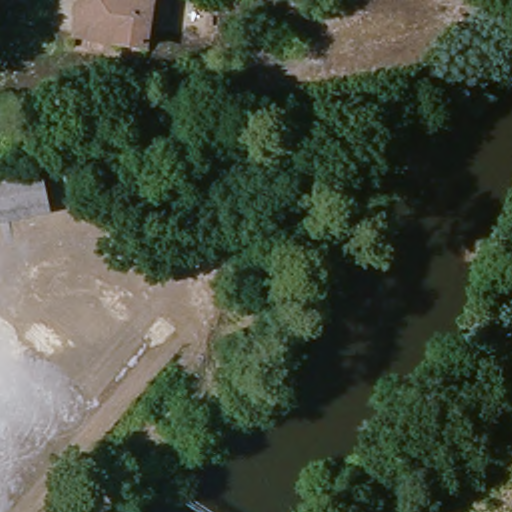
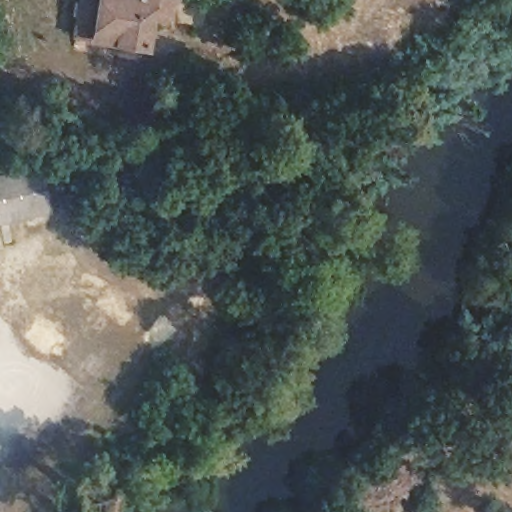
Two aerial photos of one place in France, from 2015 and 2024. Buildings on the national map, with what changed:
unchanged [(149,4),(150,0),(171,0),(165,27),(148,24),(142,53),(69,40),(75,0),(124,0),(149,4)]
unchanged [(41,216),(0,225),(0,183),(33,176),(41,216)]

